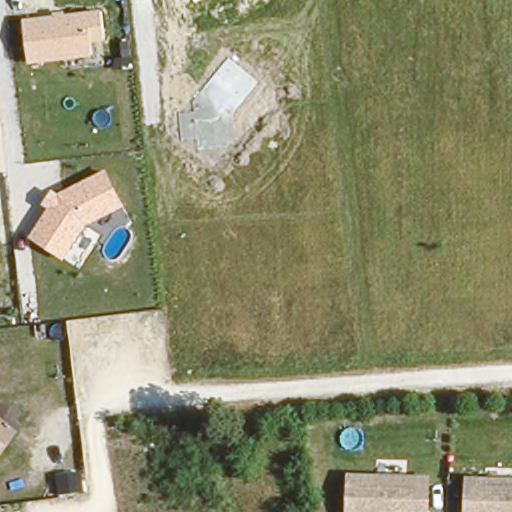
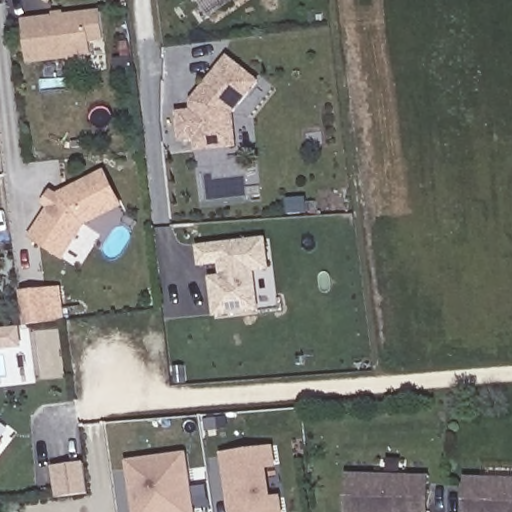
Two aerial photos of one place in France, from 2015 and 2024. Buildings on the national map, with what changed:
unchanged [(199,3),(196,0),(203,0),(199,3)]
unchanged [(105,39),(91,41),(94,55),(30,62),(25,18),(54,15),(54,13),(67,11),(67,14),(100,11),(105,39)]
unchanged [(231,114),(234,137),(226,148),(197,151),(195,140),(180,141),(177,113),(194,111),(192,101),(229,57),(258,81),(231,114)]
unchanged [(85,226),(63,260),(30,239),(49,208),(43,205),(54,189),(61,194),(107,172),(124,208),(85,226)]
new [(267,237),(272,271),(255,272),(260,311),(214,316),(210,276),(220,274),(219,264),(199,267),(197,244),(267,237)]
new [(57,286),(61,319),(46,320),(21,324),(17,291),(42,288),(57,286)]
new [(15,343),(0,345),(0,328),(12,326),(15,343)]
unchanged [(0,439),(7,444),(0,453),(0,439)]
new [(220,451),(273,445),(275,463),(266,464),(270,499),(280,497),(282,512),(228,512),(227,506),(220,451)]
new [(193,512),(131,512),(124,459),(185,450),(193,512)]
new [(82,462),(85,491),(55,496),(51,466),(82,462)]
unchanged [(421,475),(421,512),(343,512),(343,474),(379,475),(421,475)]
unchanged [(466,512),(466,480),(512,481),(512,512),(466,512)]

